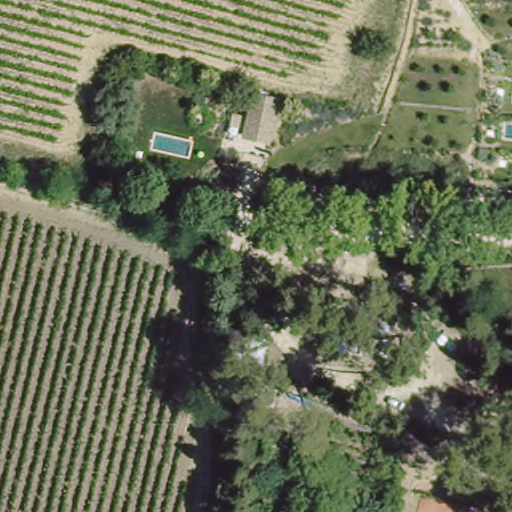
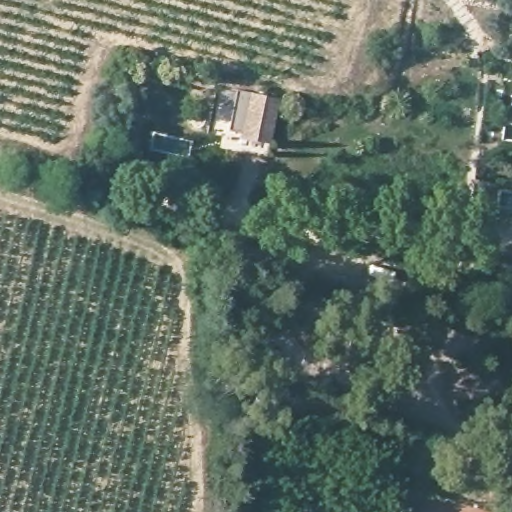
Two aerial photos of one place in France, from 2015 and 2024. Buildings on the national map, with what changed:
unchanged [(266,104),(258,150),(232,145),(240,99),(266,104)]

